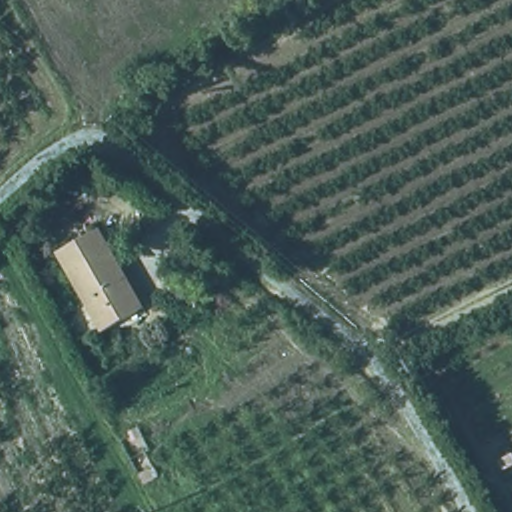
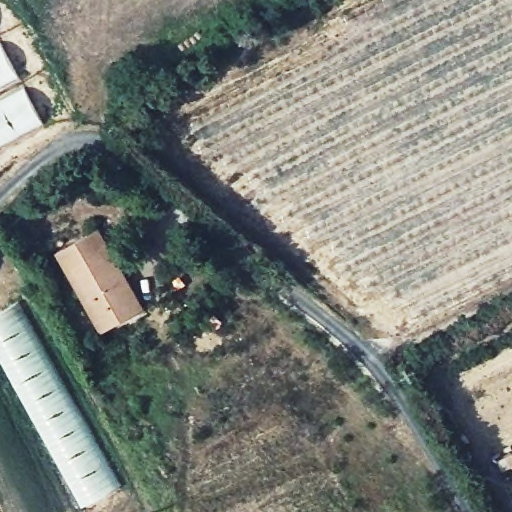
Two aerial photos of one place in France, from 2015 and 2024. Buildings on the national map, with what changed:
unchanged [(57,253),(100,229),(110,247),(145,309),(138,313),(102,333),(57,253)]
new [(0,312),(19,301),(122,484),(83,508),(0,359),(0,312)]

